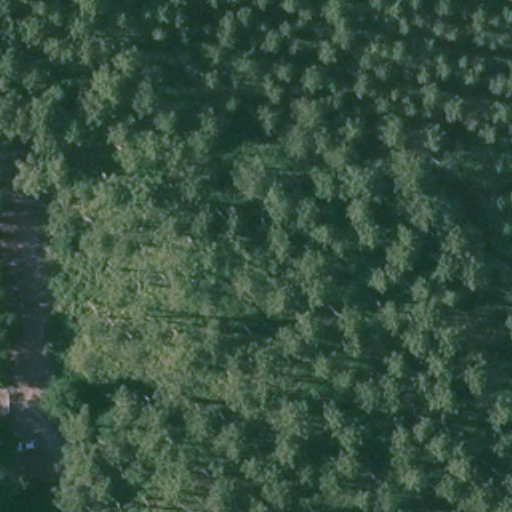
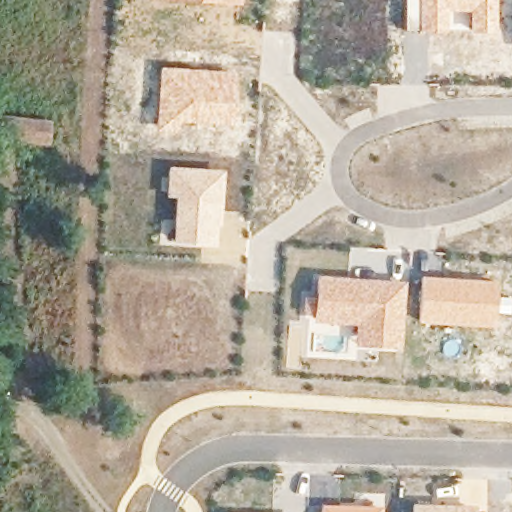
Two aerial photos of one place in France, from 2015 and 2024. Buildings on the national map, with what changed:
new [(146,0),(241,0),(241,6),(146,0)]
new [(468,34),(469,12),(446,12),(446,34),(417,33),(418,0),(496,0),(495,34),(468,34)]
new [(236,72),(232,127),(178,123),(177,133),(155,132),(159,68),(236,72)]
unchanged [(0,123),(43,127),(42,147),(0,143),(0,123)]
new [(220,227),(217,227),(215,247),(171,245),(174,199),(168,199),(167,167),(223,171),(220,227)]
new [(303,316),(304,298),(315,300),(316,276),(406,282),(401,351),(354,347),(355,326),(312,323),(312,316),(303,316)]
new [(496,282),(493,328),(418,323),(422,277),(496,282)]
new [(382,512),(321,512),(321,505),(382,507),(382,512)]
new [(411,505),(476,507),(476,512),(412,512),(411,505)]

